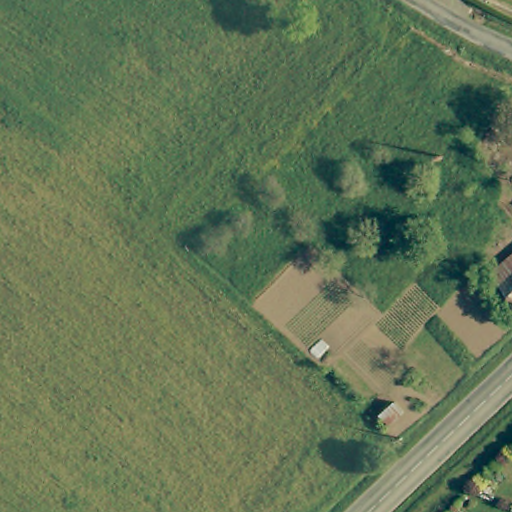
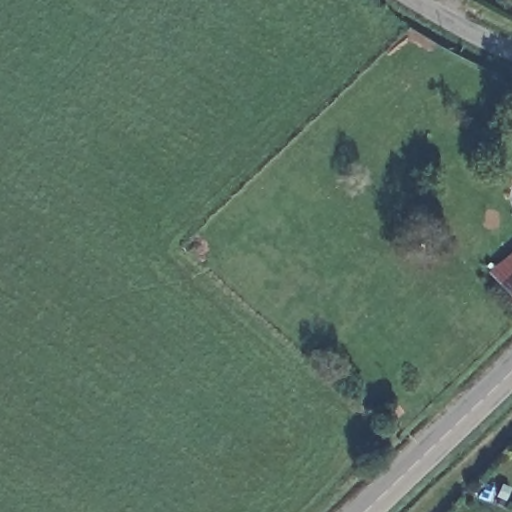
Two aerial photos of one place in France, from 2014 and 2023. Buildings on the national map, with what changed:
unchanged [(471,144),(493,121),(504,131),(482,154),(471,144)]
unchanged [(512,252),(512,291),(492,269),(512,252)]
unchanged [(398,387),(415,370),(424,380),(407,397),(398,387)]
unchanged [(369,419),(383,404),(393,413),(378,427),(369,419)]

